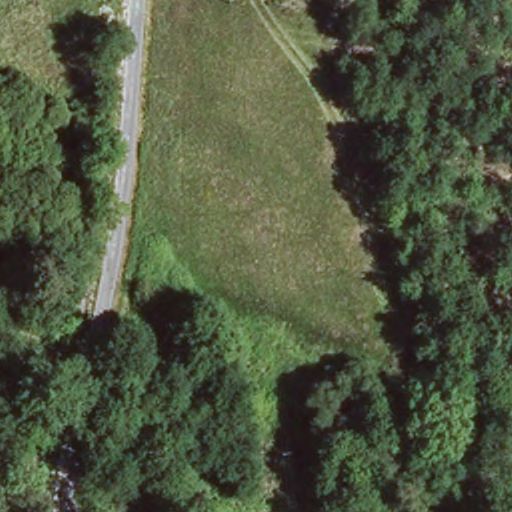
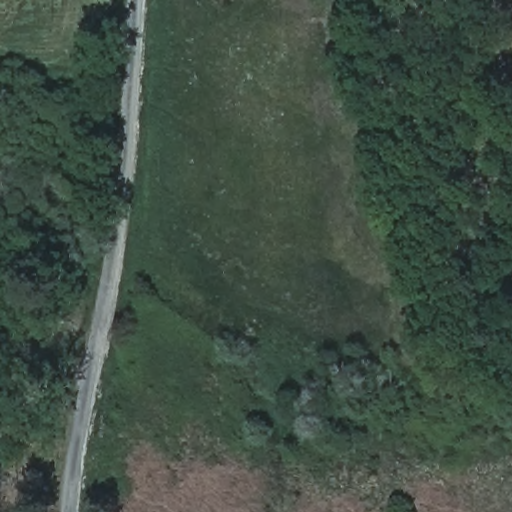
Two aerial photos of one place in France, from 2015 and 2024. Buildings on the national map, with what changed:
[]

